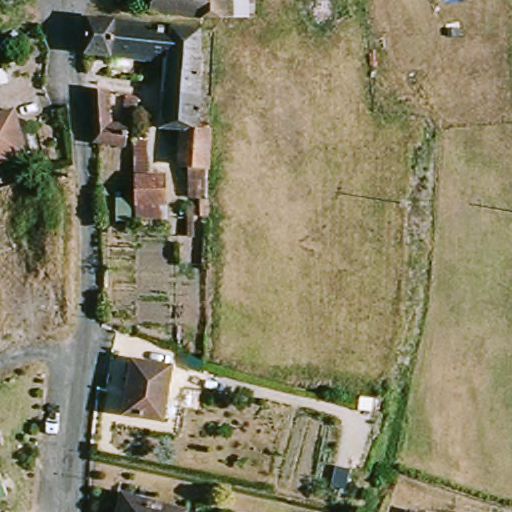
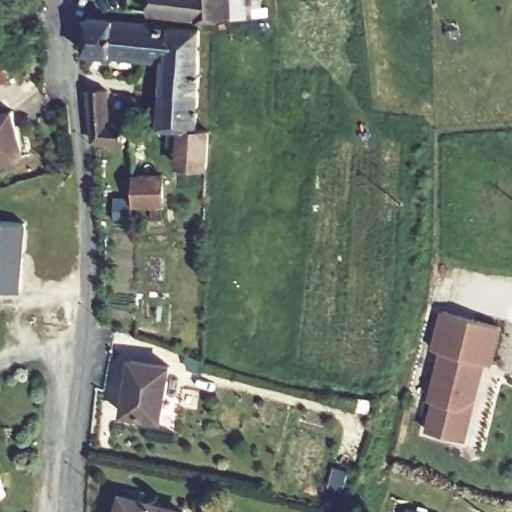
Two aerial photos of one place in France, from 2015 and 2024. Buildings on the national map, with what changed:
unchanged [(212,16),(155,15),(155,0),(253,0),(254,16),(232,16),(212,16)]
unchanged [(149,59),(148,66),(142,65),(142,58),(89,53),(93,16),(127,20),(153,23),(149,59)]
unchanged [(168,60),(149,59),(153,23),(200,28),(198,69),(167,68),(168,60)]
unchanged [(184,167),(186,127),(165,126),(166,105),(167,68),(198,69),(197,128),(210,128),(209,168),(209,196),(194,196),(195,167),(184,167)]
unchanged [(134,153),(99,149),(93,96),(104,95),(114,96),(116,129),(137,133),(134,153)]
unchanged [(143,124),(133,124),(132,100),(142,103),(143,109),(143,124)]
unchanged [(17,109),(26,145),(0,151),(0,112),(17,109)]
unchanged [(1,161),(0,162),(0,159),(1,161)]
unchanged [(169,174),(170,200),(141,203),(140,173),(169,174)]
unchanged [(140,218),(125,219),(125,199),(138,198),(140,218)]
unchanged [(208,203),(203,203),(204,198),(208,198),(208,203)]
new [(22,292),(0,289),(0,222),(28,224),(22,292)]
new [(495,365),(487,362),(467,439),(426,430),(434,400),(427,398),(439,352),(431,349),(440,309),(505,324),(495,365)]
unchanged [(151,363),(188,370),(179,423),(142,416),(151,363)]
unchanged [(0,498),(0,484),(5,496),(0,498)]
unchanged [(191,512),(127,512),(131,494),(192,506),(191,512)]

